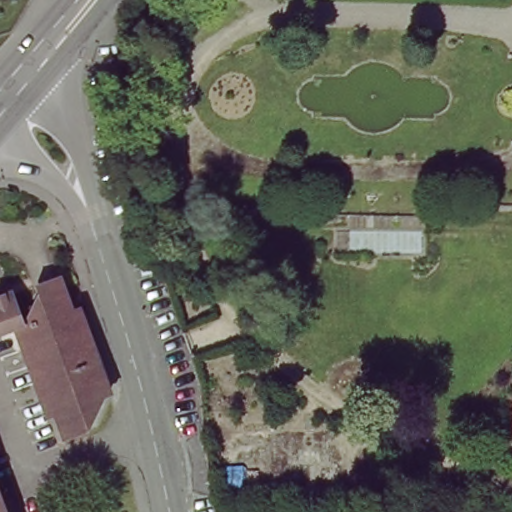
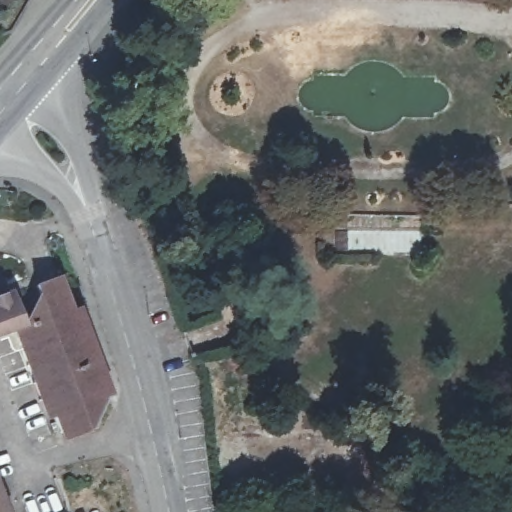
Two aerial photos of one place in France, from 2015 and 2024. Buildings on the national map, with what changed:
unchanged [(34,386),(44,382),(25,330),(32,327),(30,322),(39,293),(63,283),(102,395),(93,424),(72,432),(63,435),(50,400),(40,403),(34,386)]
unchanged [(0,335),(0,299),(12,295),(22,327),(0,335)]
unchanged [(0,494),(6,512),(0,512),(0,494)]

